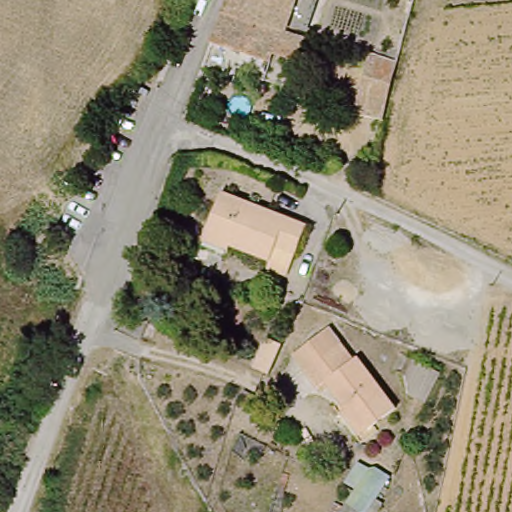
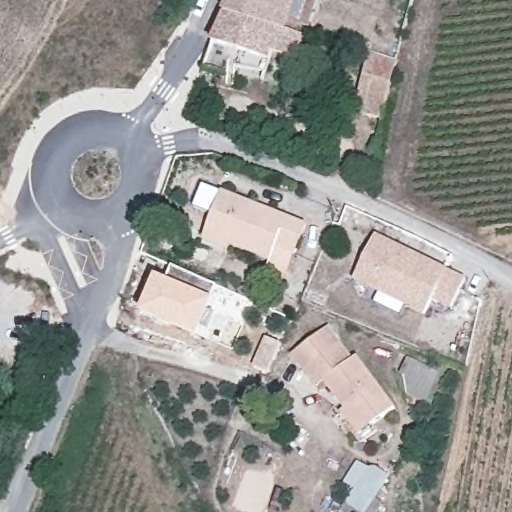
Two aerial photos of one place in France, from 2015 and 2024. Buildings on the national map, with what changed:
unchanged [(317,7),(291,1),(279,40),(219,25),(228,3),(229,0),(319,0),(317,7)]
unchanged [(279,40),(300,46),(292,67),(267,61),(263,71),(261,70),(207,56),(219,25),(279,40)]
unchanged [(256,87),(231,80),(229,87),(198,78),(207,56),(261,70),(256,87)]
unchanged [(365,57),(394,66),(377,119),(348,110),(365,57)]
unchanged [(199,247),(206,230),(219,193),(301,222),(302,223),(281,277),(259,270),(264,257),(229,245),(224,256),(199,247)]
new [(467,279),(452,310),(434,301),(426,317),(354,280),(376,235),(467,279)]
new [(166,278),(172,265),(217,285),(214,295),(198,337),(139,312),(155,274),(166,278)]
unchanged [(344,415),(348,412),(326,383),(322,387),(308,368),(310,366),(299,351),(333,326),(358,360),(360,358),(398,408),(374,426),(360,436),(344,415)]
unchanged [(267,339),(281,345),(270,375),(256,369),(267,339)]
unchanged [(400,373),(406,358),(440,373),(427,403),(408,395),(404,375),(400,373)]
new [(345,483),(360,463),(369,469),(377,469),(392,478),(369,512),(344,512),(343,511),(356,491),(345,483)]

